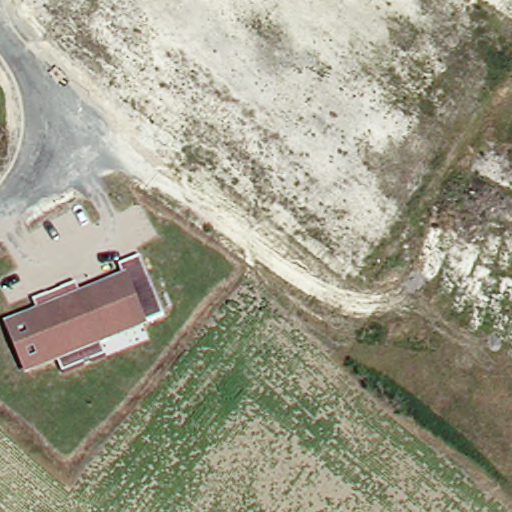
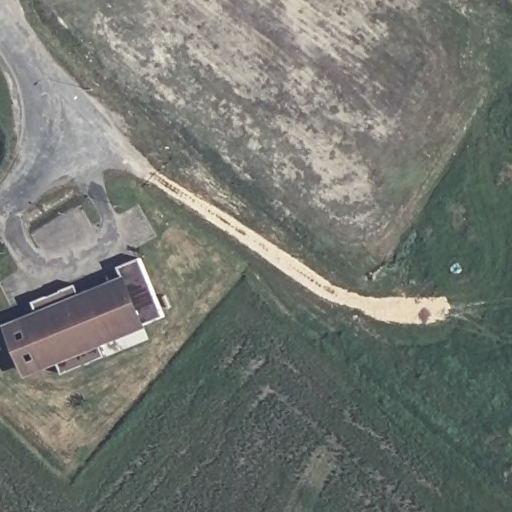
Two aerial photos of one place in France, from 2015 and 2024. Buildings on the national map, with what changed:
unchanged [(7,334),(5,327),(25,320),(36,315),(30,300),(74,287),(79,298),(90,294),(121,281),(117,268),(138,259),(161,317),(140,325),(107,338),(95,342),(101,358),(58,374),(52,361),(42,364),(22,371),(19,364),(7,334)]

